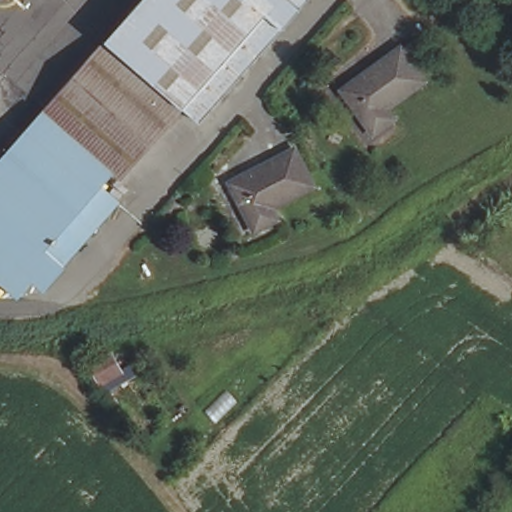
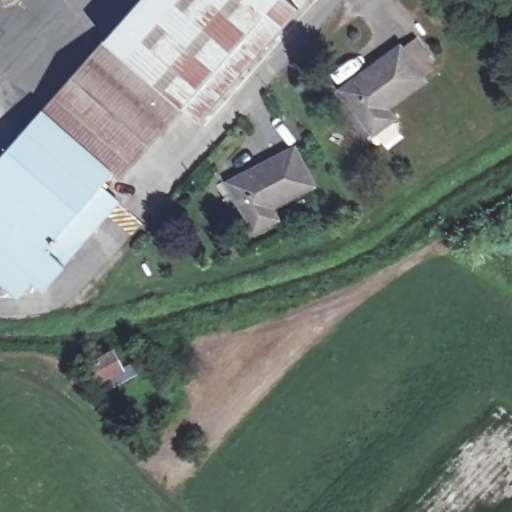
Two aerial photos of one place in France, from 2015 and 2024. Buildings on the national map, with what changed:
unchanged [(187,112),(113,45),(153,0),(319,0),(305,16),(289,34),(205,128),(187,112)]
unchanged [(386,108),(394,119),(375,133),(344,90),(402,48),(402,49),(416,39),(436,65),(422,75),(425,80),(386,108)]
unchanged [(187,112),(126,183),(118,177),(51,116),(113,45),(187,112)]
unchanged [(118,177),(105,191),(124,208),(50,294),(39,284),(24,302),(0,282),(0,175),(51,116),(118,177)]
unchanged [(300,149),(318,184),(276,206),(282,218),(261,229),(237,182),(300,149)]
unchanged [(94,378),(85,365),(102,353),(111,365),(94,378)]

